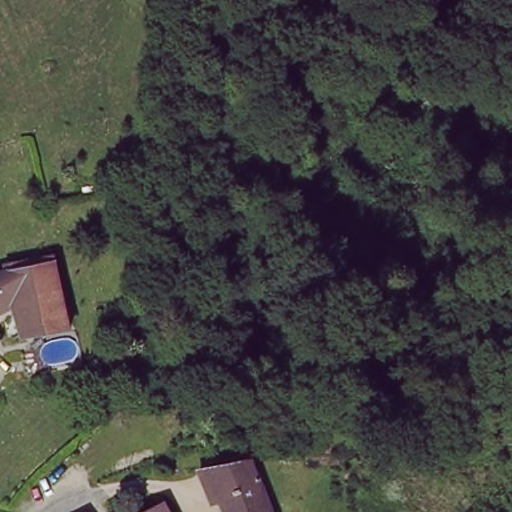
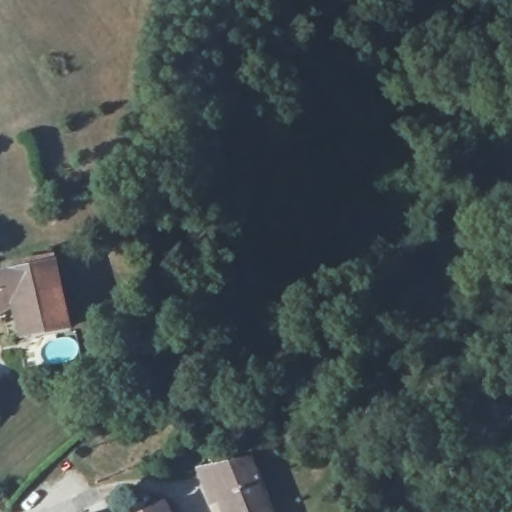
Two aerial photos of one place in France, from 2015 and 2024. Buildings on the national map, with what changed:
unchanged [(74,328),(51,336),(37,343),(13,301),(0,307),(0,269),(55,254),(74,328)]
unchanged [(173,466),(178,463),(187,460),(192,468),(251,462),(267,512),(222,512),(214,495),(206,498),(194,475),(180,480),(173,466)]
unchanged [(166,512),(120,512),(113,500),(150,481),(166,512)]
unchanged [(85,511),(86,512),(82,512),(85,511)]

